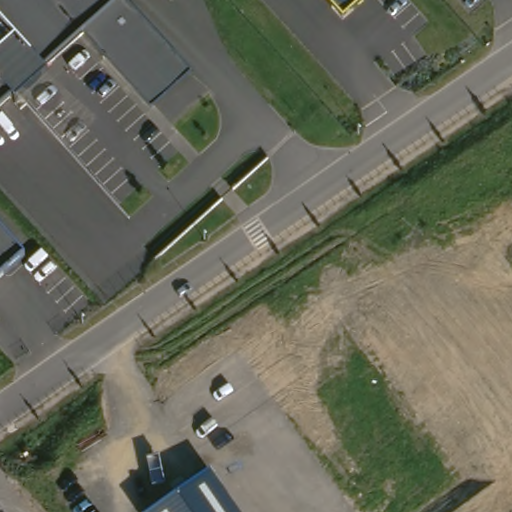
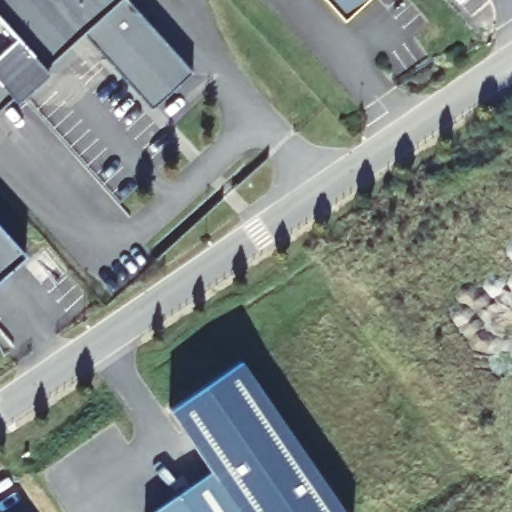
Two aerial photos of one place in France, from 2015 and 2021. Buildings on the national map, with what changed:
unchanged [(157,104),(88,33),(49,66),(52,71),(23,100),(17,95),(0,108),(0,0),(130,0),(194,72),(157,104)]
unchanged [(323,0),(366,0),(342,21),(323,0)]
unchanged [(0,279),(0,227),(27,256),(0,279)]
new [(170,409),(239,360),(344,512),(239,512),(212,471),(170,409)]
unchanged [(239,512),(150,512),(212,471),(239,512)]

